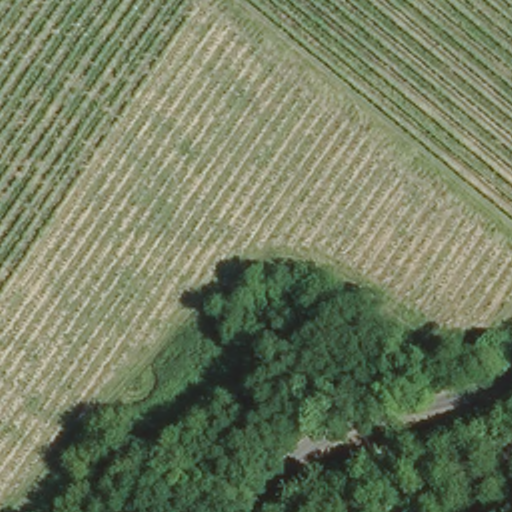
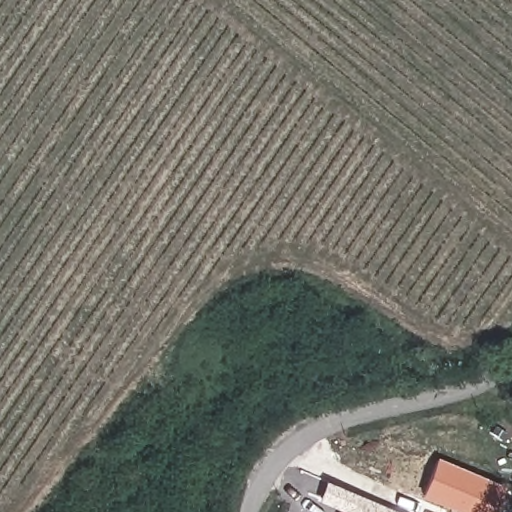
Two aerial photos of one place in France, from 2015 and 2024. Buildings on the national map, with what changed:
new [(508,488),(496,512),(459,512),(424,498),(440,459),(508,488)]
new [(323,502),(330,483),(397,512),(343,512),(323,502)]

